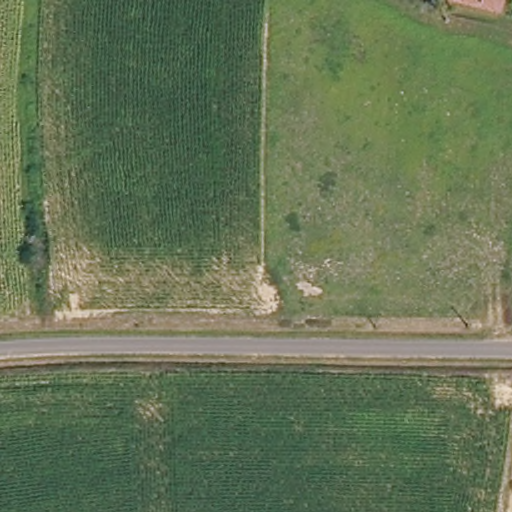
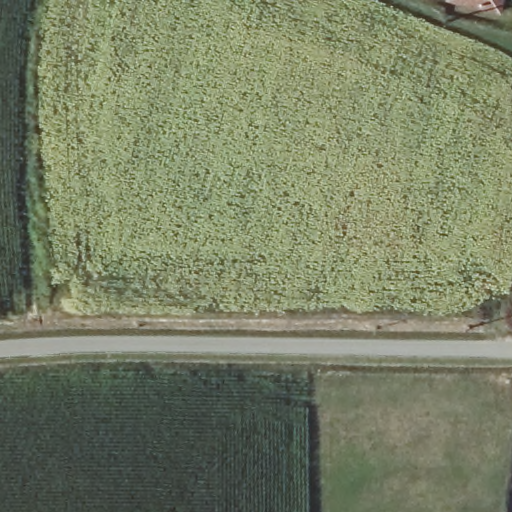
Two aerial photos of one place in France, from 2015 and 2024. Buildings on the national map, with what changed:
unchanged [(512,15),(456,0),(512,0),(512,15)]

